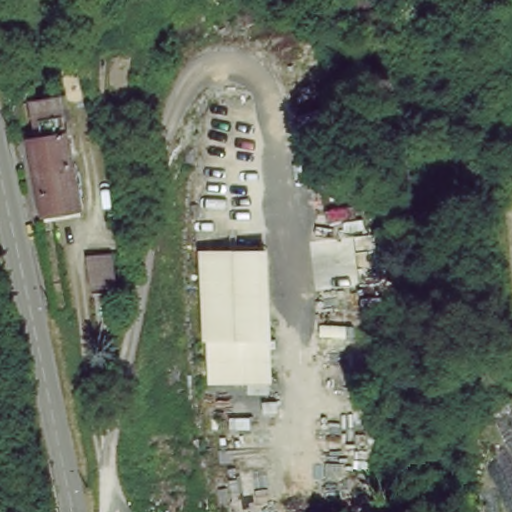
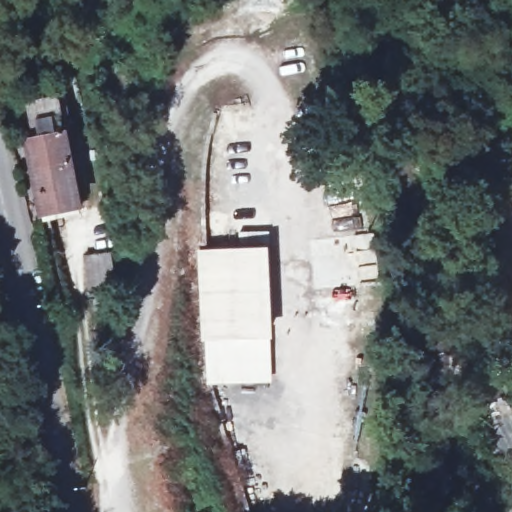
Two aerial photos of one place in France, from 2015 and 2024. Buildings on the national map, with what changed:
unchanged [(87,195),(48,205),(29,133),(35,131),(30,114),(62,111),(63,111),(87,195)]
unchanged [(272,337),(272,383),(203,387),(195,252),(271,248),(272,337)]
unchanged [(90,257),(111,251),(118,281),(96,286),(90,257)]

